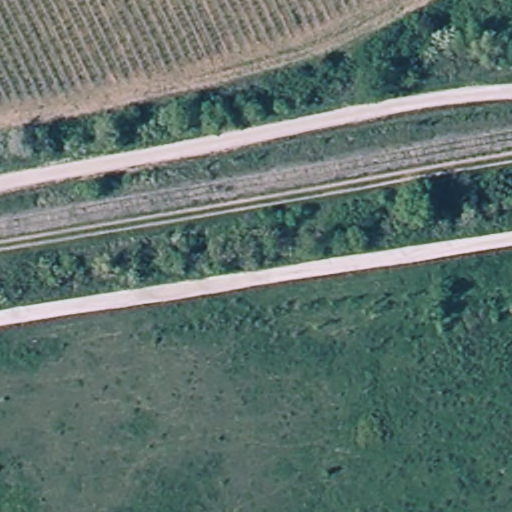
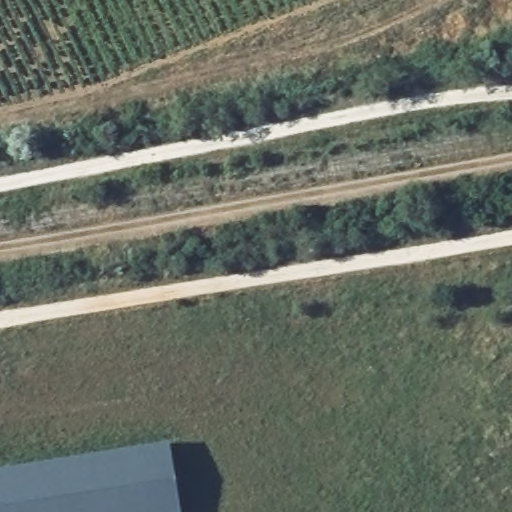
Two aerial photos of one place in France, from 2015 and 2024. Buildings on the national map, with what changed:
new [(180,512),(0,512),(0,469),(168,443),(180,512)]

